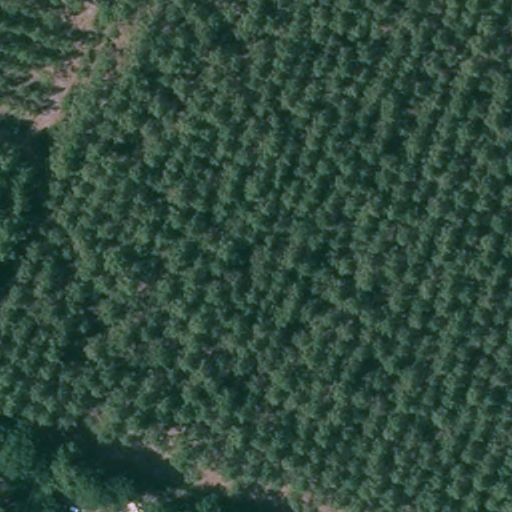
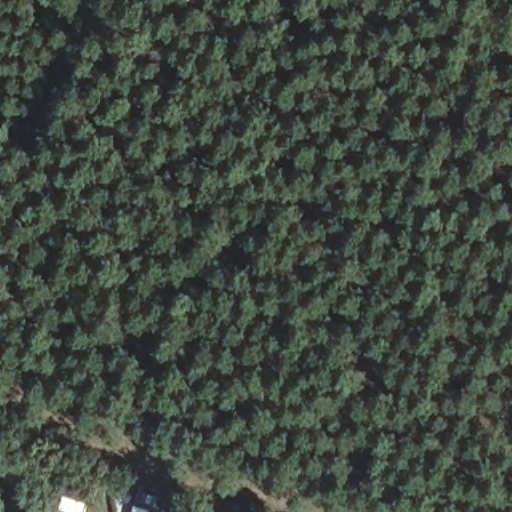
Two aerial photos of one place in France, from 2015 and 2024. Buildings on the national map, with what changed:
[]

